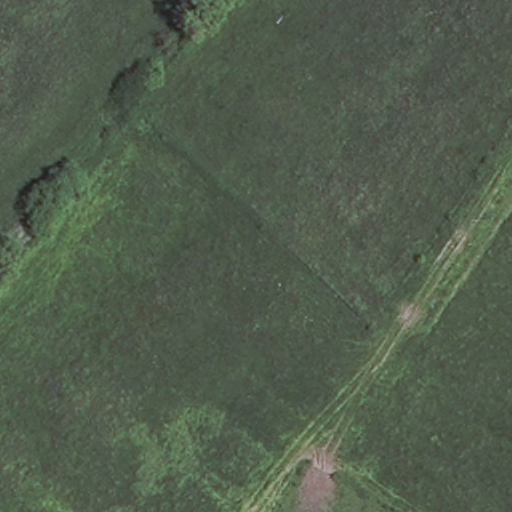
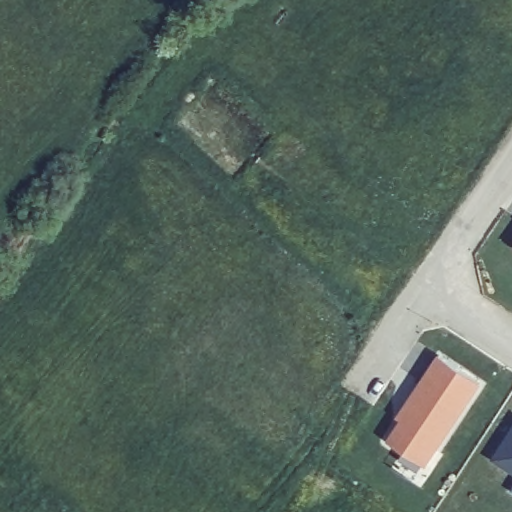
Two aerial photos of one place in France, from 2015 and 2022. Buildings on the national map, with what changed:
new [(387,440),(401,420),(397,416),(440,355),(482,382),(425,466),(387,440)]

